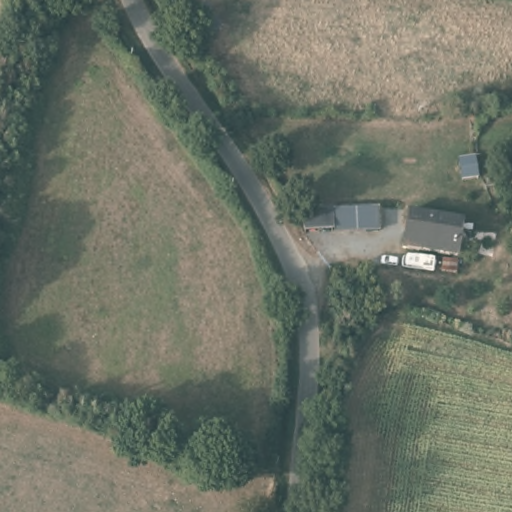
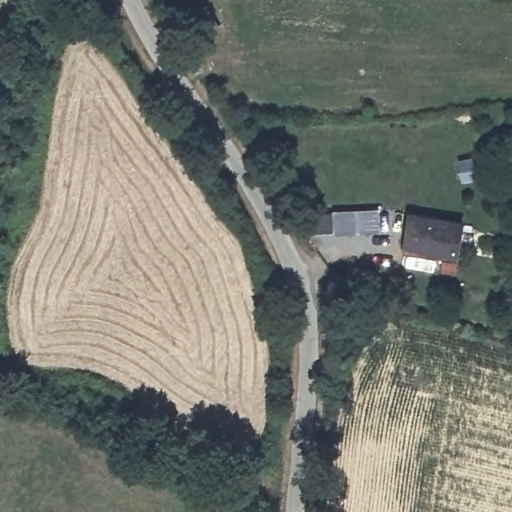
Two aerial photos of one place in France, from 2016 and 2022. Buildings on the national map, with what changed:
unchanged [(326,207),(325,225),(299,224),(299,206),(326,207)]
unchanged [(372,210),(371,227),(329,225),(330,208),(372,210)]
unchanged [(406,247),(410,210),(462,219),(456,255),(406,247)]

